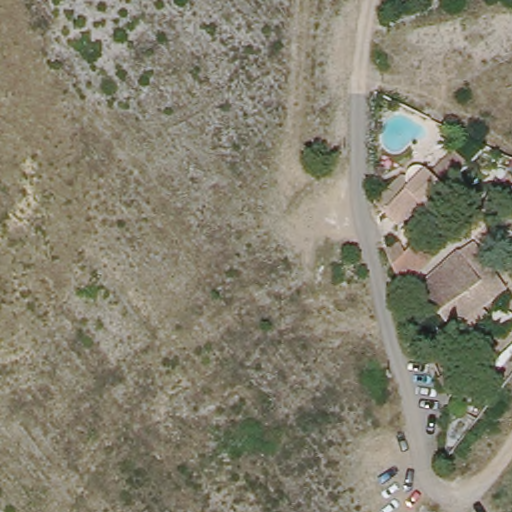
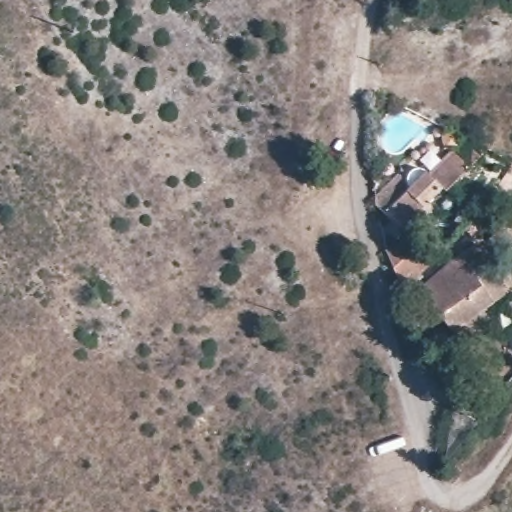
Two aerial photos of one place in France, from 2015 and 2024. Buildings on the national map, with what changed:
unchanged [(427,171),(441,190),(402,228),(379,211),(377,202),(398,181),(406,189),(427,171)]
unchanged [(483,284),(460,254),(476,241),(511,290),(486,309),(491,314),(468,332),(451,310),(483,284)]
unchanged [(435,256),(402,290),(386,248),(401,242),(406,255),(421,243),(435,256)]
unchanged [(423,285),(460,254),(483,284),(451,310),(444,316),(423,285)]

